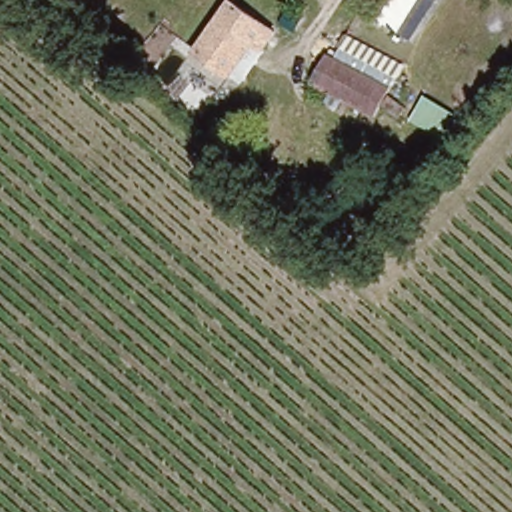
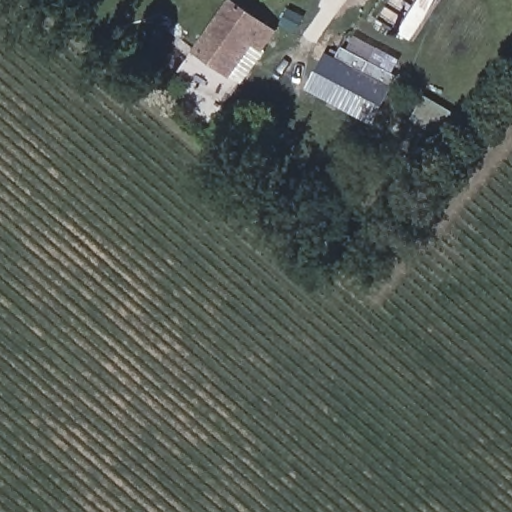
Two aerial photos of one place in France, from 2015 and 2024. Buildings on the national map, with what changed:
unchanged [(227,0),(270,29),(254,51),(244,45),(224,74),(189,50),(225,0),(227,0)]
unchanged [(328,44),(341,49),(337,57),(390,84),(386,96),(402,104),(397,115),(377,105),(372,114),(312,83),(328,44)]

